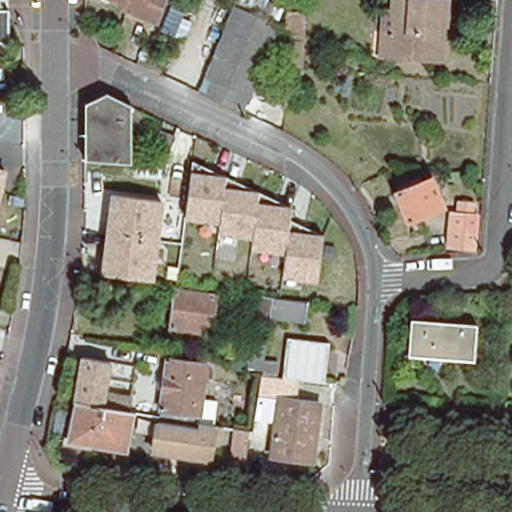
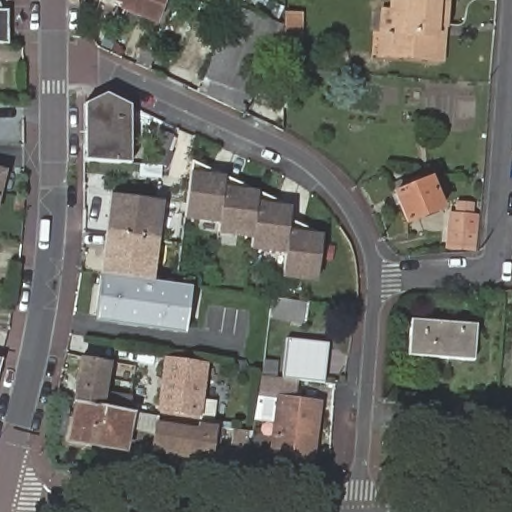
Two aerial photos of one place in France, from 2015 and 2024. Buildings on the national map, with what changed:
unchanged [(145,22),(130,15),(113,8),(116,0),(154,0),(145,22)]
unchanged [(374,5),(383,5),(383,0),(444,0),(444,24),(433,24),(433,35),(431,56),(370,51),(374,5)]
unchanged [(280,21),(244,110),(196,87),(231,1),(280,21)]
unchanged [(2,10),(7,11),(7,42),(0,40),(0,4),(2,10)]
unchanged [(301,14),(301,59),(282,59),(283,14),(301,14)]
unchanged [(141,45),(167,55),(160,73),(133,63),(141,45)]
unchanged [(85,146),(84,106),(105,95),(125,105),(117,164),(101,164),(85,163),(85,146)]
unchanged [(157,121),(174,128),(164,155),(147,155),(157,121)]
unchanged [(319,284),(283,280),(285,254),(252,250),(254,240),(218,237),(219,222),(184,219),(190,174),(193,160),(291,208),(290,220),(324,235),(319,284)]
unchanged [(9,171),(0,210),(0,169),(9,171)]
unchanged [(396,195),(430,180),(442,207),(408,222),(396,195)]
unchanged [(154,280),(101,274),(111,195),(165,201),(154,280)]
unchanged [(455,214),(475,215),(473,250),(452,247),(455,214)]
new [(101,275),(125,278),(191,286),(188,311),(185,335),(94,321),(97,298),(101,275)]
demolished [(175,292),(214,296),(209,333),(170,328),(175,292)]
unchanged [(272,299),(307,303),(305,322),(270,318),(272,299)]
unchanged [(411,321),(477,326),(474,360),(408,355),(411,321)]
demolished [(262,375),(260,392),(228,388),(231,365),(235,340),(266,343),(262,375)]
unchanged [(285,340),(325,345),(321,382),(306,380),(296,380),(286,378),(280,377),(285,340)]
unchanged [(70,401),(77,358),(109,363),(105,396),(132,398),(133,411),(70,401)]
unchanged [(224,427),(220,450),(214,450),(212,462),(195,460),(153,453),(157,427),(158,422),(166,365),(205,370),(198,423),(217,425),(224,427)]
unchanged [(293,402),(318,406),(311,462),(269,457),(277,400),(259,398),(260,392),(262,375),(280,377),(286,378),(296,380),(293,402)]
unchanged [(85,405),(101,407),(131,412),(129,424),(137,426),(135,438),(127,437),(125,450),(69,441),(75,403),(85,405)]
unchanged [(235,432),(249,435),(245,465),(230,464),(235,432)]

